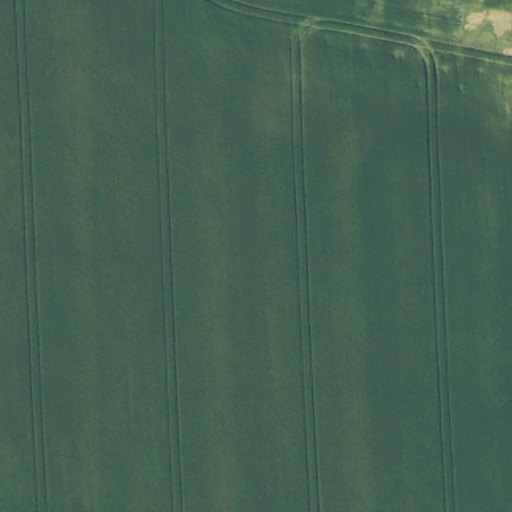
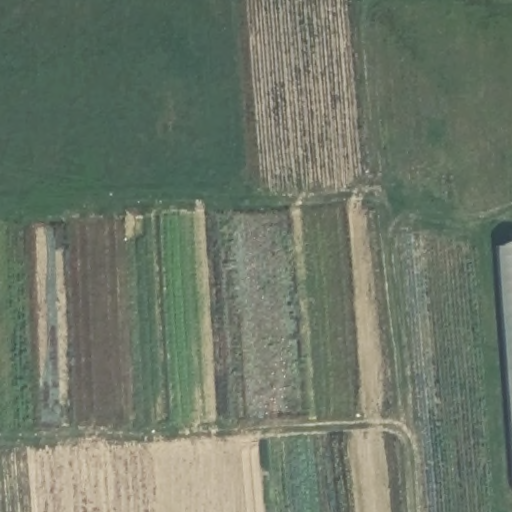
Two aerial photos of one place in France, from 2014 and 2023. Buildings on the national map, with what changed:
new [(496,249),(512,247),(512,461),(496,249)]

